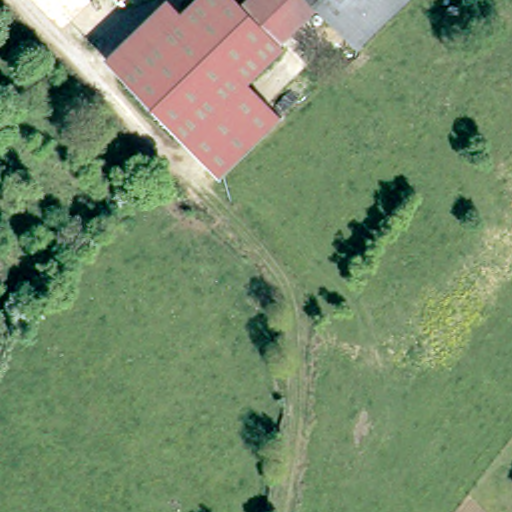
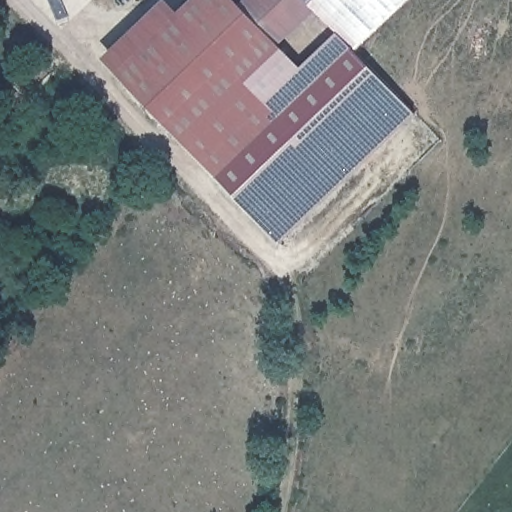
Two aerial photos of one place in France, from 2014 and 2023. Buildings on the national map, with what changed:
unchanged [(242,76),(183,132),(118,64),(186,0),(245,0),(277,34),(282,39),(242,76)]
unchanged [(311,0),(277,34),(245,0),(311,0)]
unchanged [(317,0),(354,0),(333,19),(317,0)]
unchanged [(333,19),(354,0),(400,0),(355,43),(333,19)]
new [(303,65),(342,28),(355,43),(417,112),(284,240),(218,169),(278,113),(242,76),(282,39),(303,65)]
unchanged [(242,76),(278,113),(218,169),(183,132),(242,76)]

